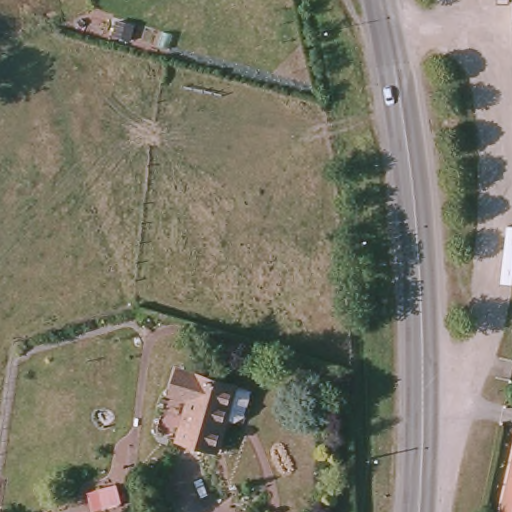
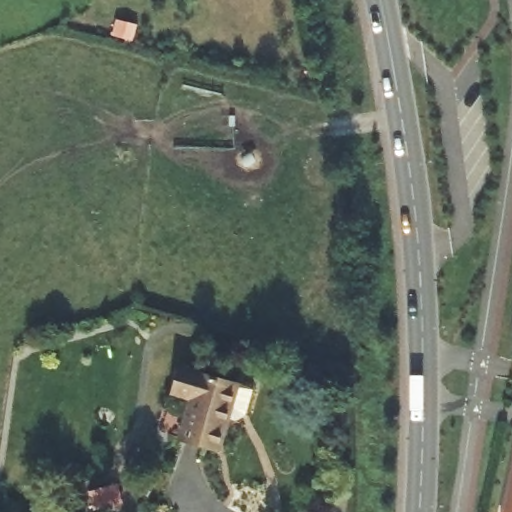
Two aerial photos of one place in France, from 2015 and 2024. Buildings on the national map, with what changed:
unchanged [(235,379),(253,385),(243,424),(233,431),(223,428),(215,451),(177,439),(190,398),(172,392),(178,369),(232,386),(235,379)]
unchanged [(512,456),(512,512),(500,512),(512,456)]

